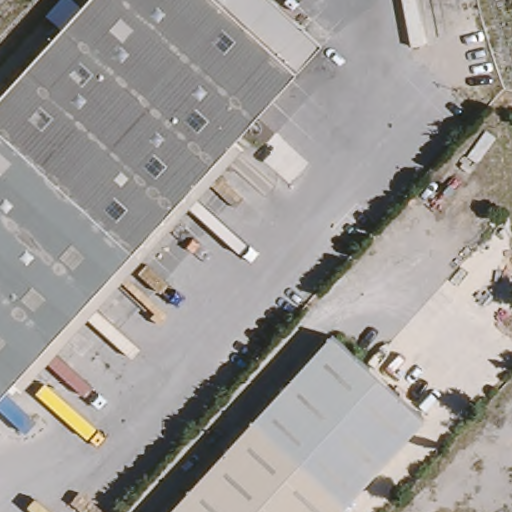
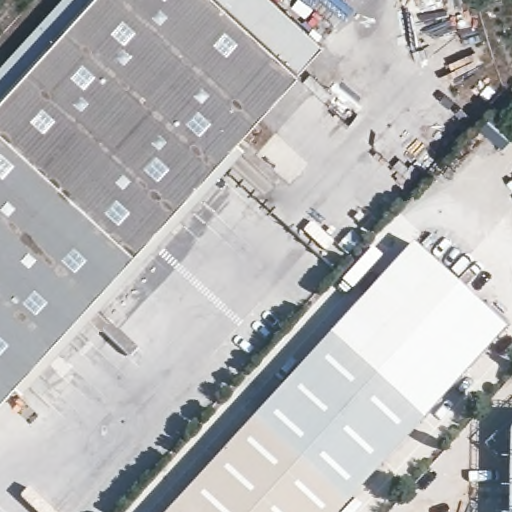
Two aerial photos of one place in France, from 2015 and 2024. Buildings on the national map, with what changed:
unchanged [(320,51),(0,401),(0,100),(92,0),(264,0),(320,51)]
new [(414,248),(507,330),(423,426),(421,423),(329,341),(414,248)]
unchanged [(338,512),(167,512),(326,338),(421,423),(338,512)]
new [(512,428),(512,512),(507,512),(507,432),(512,428)]

